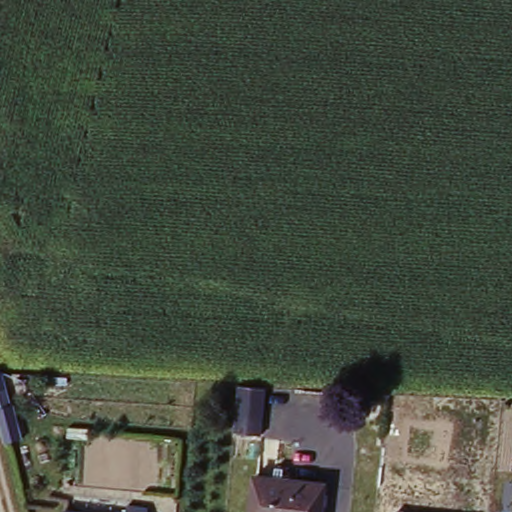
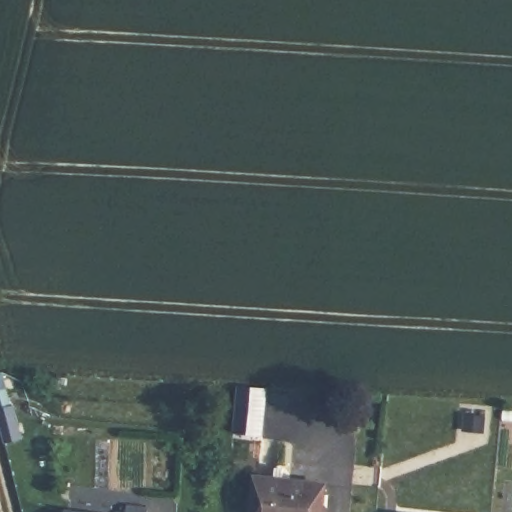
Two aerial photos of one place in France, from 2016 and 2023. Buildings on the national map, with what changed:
unchanged [(4,436),(0,418),(0,369),(9,367),(31,430),(4,436)]
unchanged [(234,434),(239,382),(268,385),(263,435),(234,434)]
unchanged [(255,472),(324,479),(320,512),(250,512),(255,472)]
unchanged [(149,512),(67,512),(70,498),(128,509),(131,492),(150,496),(149,512)]

